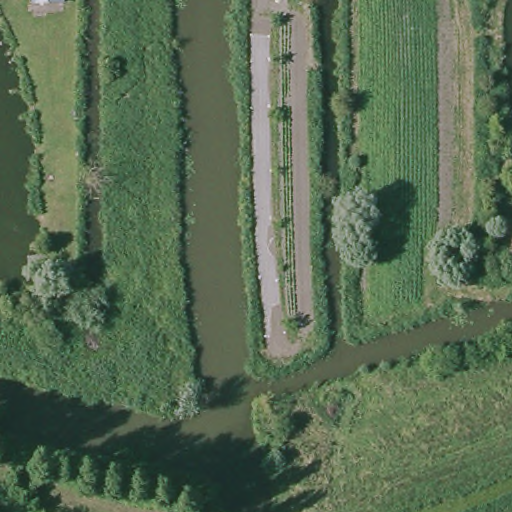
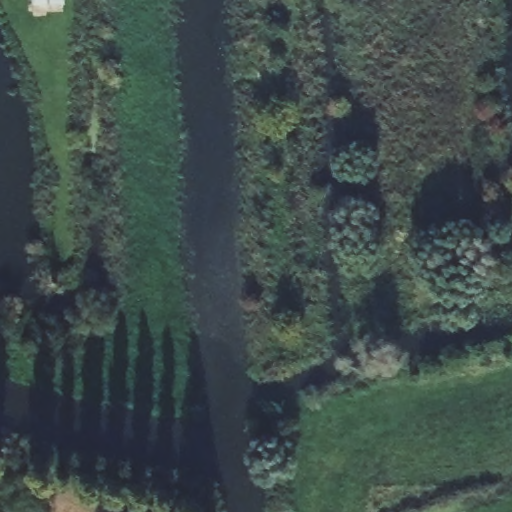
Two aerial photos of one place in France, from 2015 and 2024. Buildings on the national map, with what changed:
unchanged [(62,0),(62,9),(33,8),(33,0),(62,0)]

